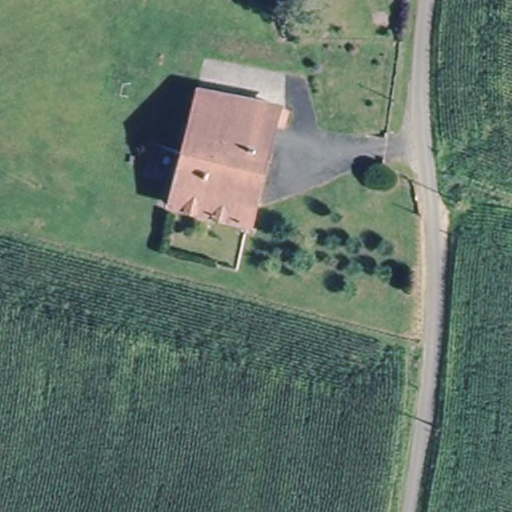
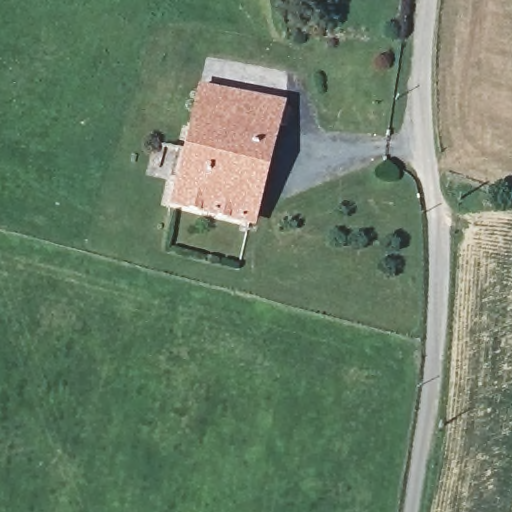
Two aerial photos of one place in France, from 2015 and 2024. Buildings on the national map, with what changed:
unchanged [(249,223),(170,203),(187,136),(199,89),(279,104),(290,109),(285,126),(274,123),(249,223)]

